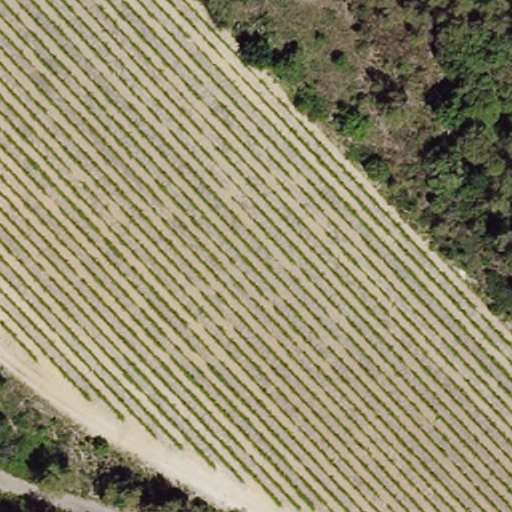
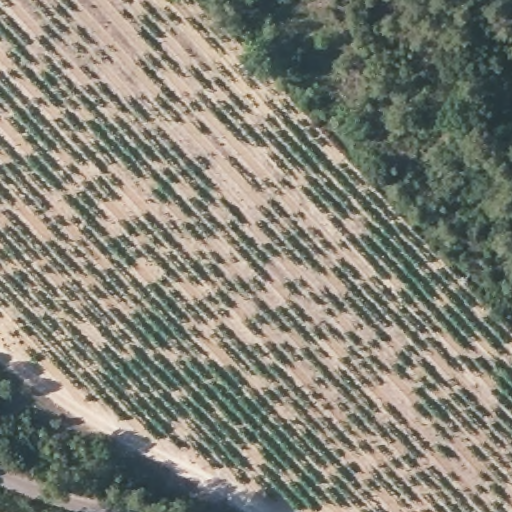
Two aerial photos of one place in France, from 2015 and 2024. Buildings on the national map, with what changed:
[]

